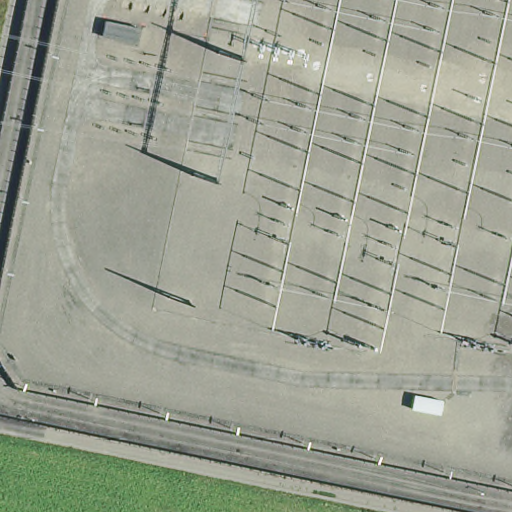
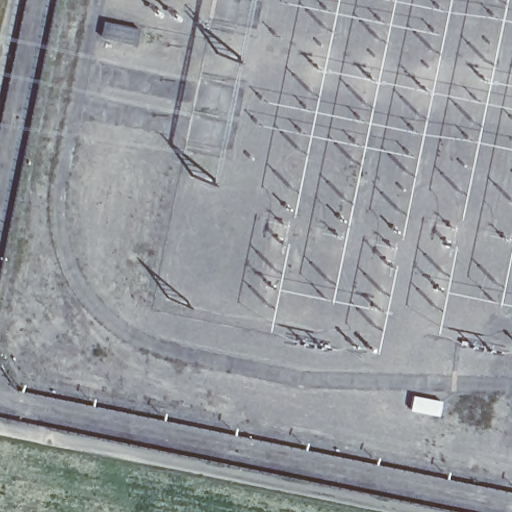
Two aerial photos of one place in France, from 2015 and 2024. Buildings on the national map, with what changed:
[]

